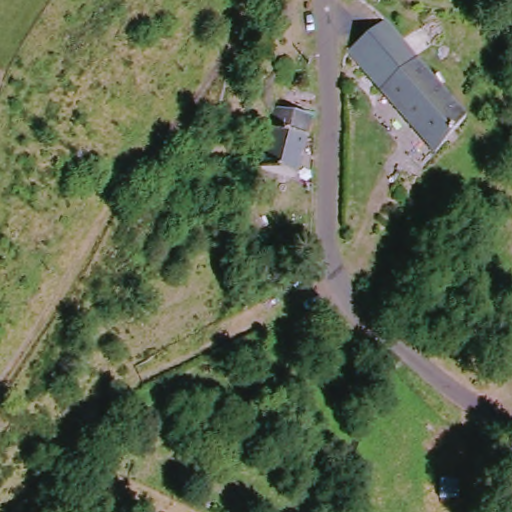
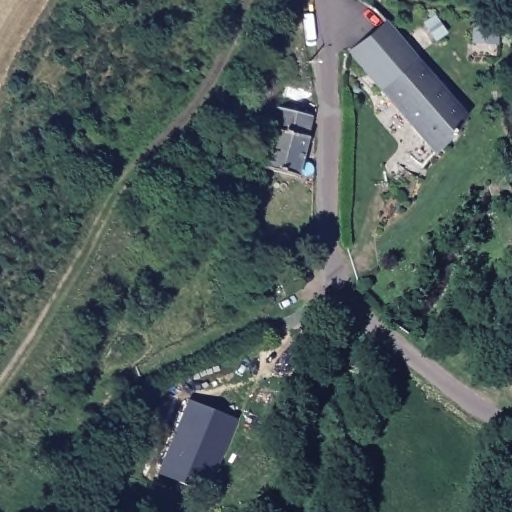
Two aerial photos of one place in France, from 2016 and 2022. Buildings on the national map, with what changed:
unchanged [(387,92),(350,52),(389,22),(422,60),(387,92)]
unchanged [(470,125),(442,155),(387,92),(422,60),(470,125)]
unchanged [(315,142),(307,181),(272,175),(284,110),(312,114),(315,124),(309,140),(315,142)]
new [(206,495),(157,474),(188,399),(235,419),(206,495)]

